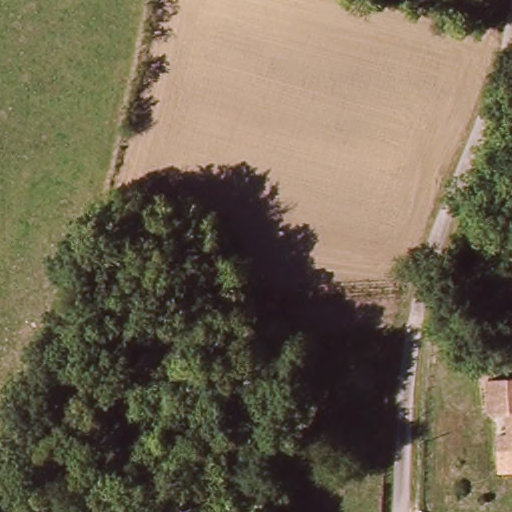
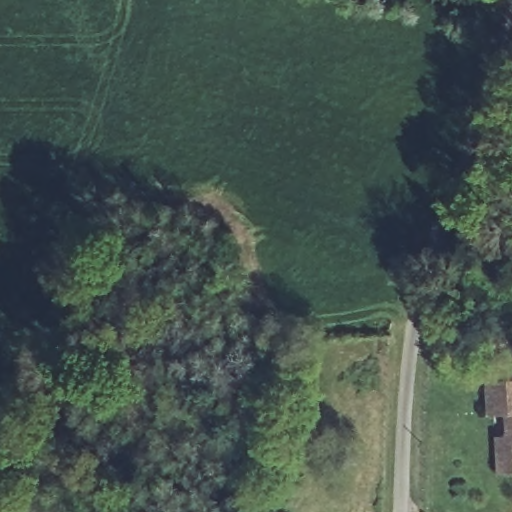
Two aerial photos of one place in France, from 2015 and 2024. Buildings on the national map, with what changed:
unchanged [(500,477),(499,461),(497,440),(510,440),(507,417),(489,418),(487,387),(512,384),(512,475),(500,477)]

